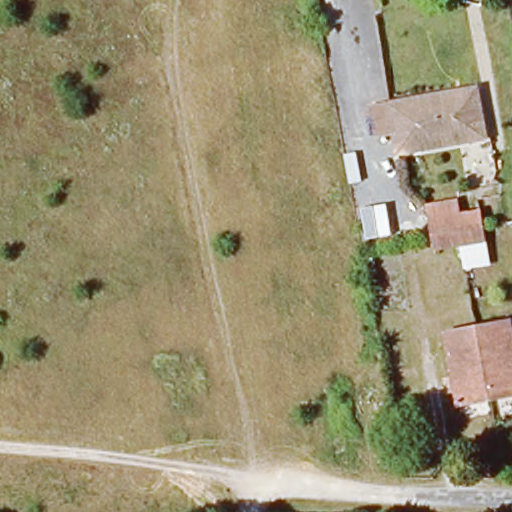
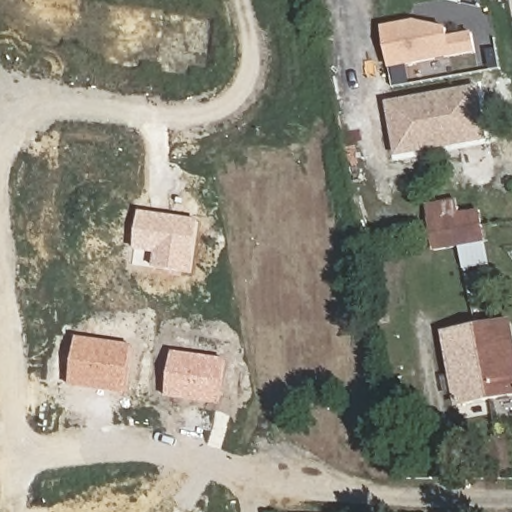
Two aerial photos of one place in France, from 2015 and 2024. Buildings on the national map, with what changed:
new [(475,32),(476,53),(389,69),(382,26),(415,20),(449,29),(450,36),(475,32)]
unchanged [(486,138),(398,154),(395,131),(377,134),(372,108),(477,89),(486,138)]
unchanged [(486,243),(461,247),(435,251),(432,236),(427,206),(458,200),(461,215),(481,211),(484,227),(486,243)]
new [(156,254),(135,251),(140,211),(200,220),(194,273),(155,268),(156,254)]
unchanged [(512,395),(490,399),(458,405),(445,334),(476,328),(510,322),(512,330),(512,395)]
new [(134,345),(128,394),(70,386),(78,337),(134,345)]
new [(174,351),(227,358),(221,405),(167,397),(174,351)]

